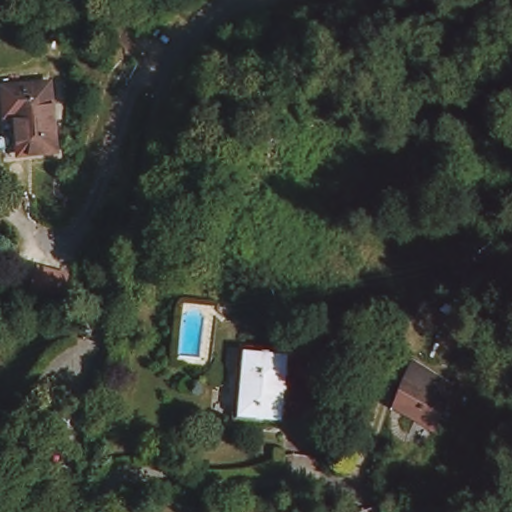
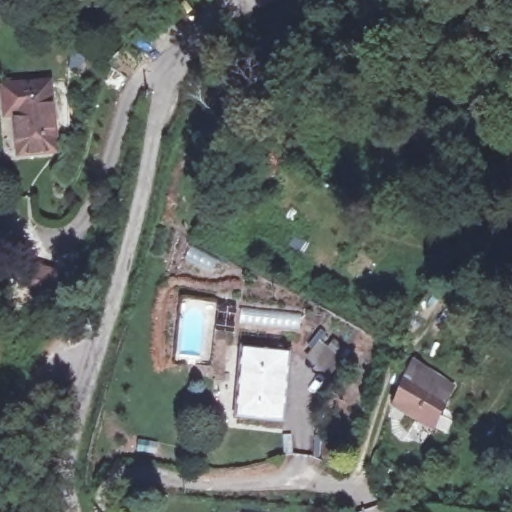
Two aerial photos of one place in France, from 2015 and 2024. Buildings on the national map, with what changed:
unchanged [(7,119),(0,121),(0,87),(50,81),(57,156),(34,160),(12,163),(10,147),(7,119)]
unchanged [(287,356),(274,423),(230,414),(242,347),(287,356)]
unchanged [(445,386),(454,394),(446,407),(432,431),(394,411),(409,384),(418,367),(427,372),(445,383),(445,386)]

